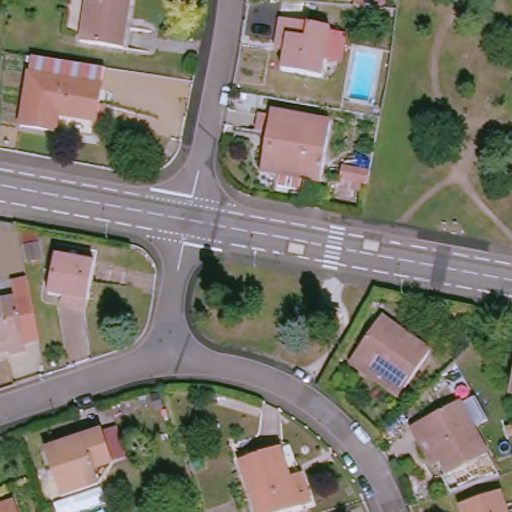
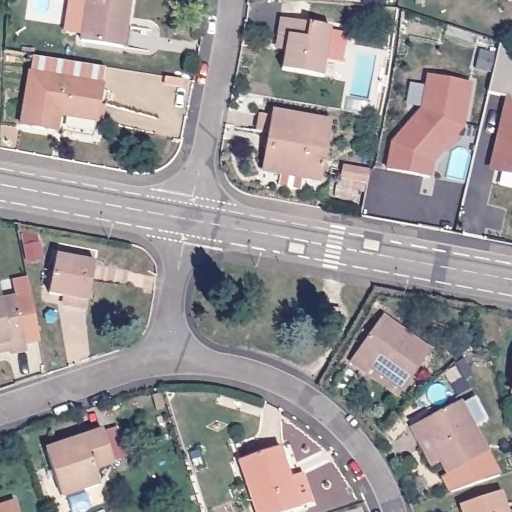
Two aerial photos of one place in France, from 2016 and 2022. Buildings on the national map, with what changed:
unchanged [(87,0),(130,0),(122,48),(80,40),(87,0)]
unchanged [(284,70),(291,43),(280,40),(285,19),(335,29),(326,79),(284,70)]
new [(500,44),(512,65),(512,175),(488,169),(507,96),(488,93),(500,44)]
unchanged [(22,124),(30,74),(102,84),(93,135),(22,124)]
new [(392,142),(421,108),(427,75),(472,84),(463,128),(457,137),(460,139),(448,154),(444,150),(433,162),(431,178),(387,170),(392,142)]
unchanged [(267,169),(277,113),(337,123),(327,179),(267,169)]
unchanged [(340,174),(342,164),(365,168),(362,179),(340,174)]
unchanged [(69,299),(50,296),(57,255),(112,266),(112,269),(105,314),(67,308),(69,299)]
unchanged [(33,356),(16,360),(13,347),(0,349),(0,308),(22,304),(18,288),(35,285),(37,300),(46,346),(31,349),(33,356)]
unchanged [(318,307),(340,311),(339,323),(316,320),(318,307)]
unchanged [(367,377),(354,367),(386,322),(435,354),(409,392),(403,399),(367,377)]
unchanged [(440,466),(431,470),(412,430),(460,407),(462,411),(474,405),(484,427),(473,432),(486,459),(447,481),(440,466)]
unchanged [(57,452),(113,432),(123,464),(106,471),(109,482),(72,497),(57,452)]
unchanged [(312,506),(300,509),(289,512),(256,512),(242,462),(280,449),(290,481),(303,477),(312,506)]
unchanged [(467,507),(505,493),(512,512),(468,512),(467,507)]
unchanged [(18,512),(0,512),(0,507),(14,502),(18,512)]

